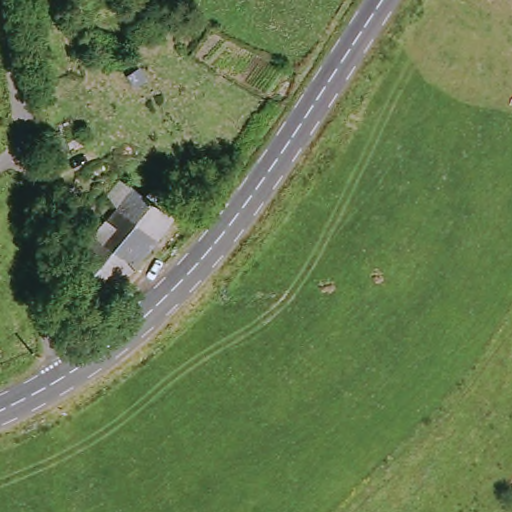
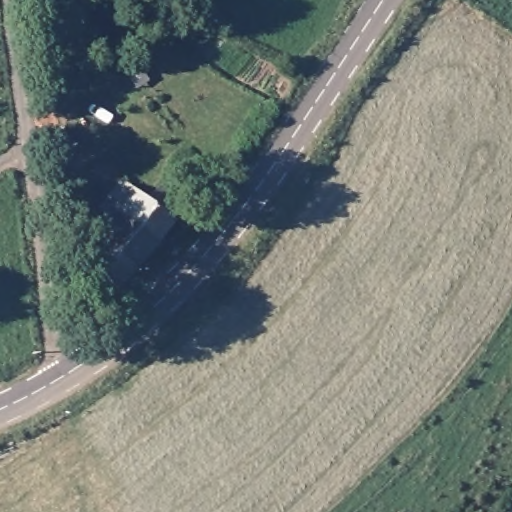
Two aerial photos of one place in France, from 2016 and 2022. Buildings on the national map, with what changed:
unchanged [(110,306),(79,280),(85,257),(79,252),(95,232),(101,237),(124,209),(113,201),(129,181),(153,199),(167,185),(191,205),(114,302),(110,306)]

